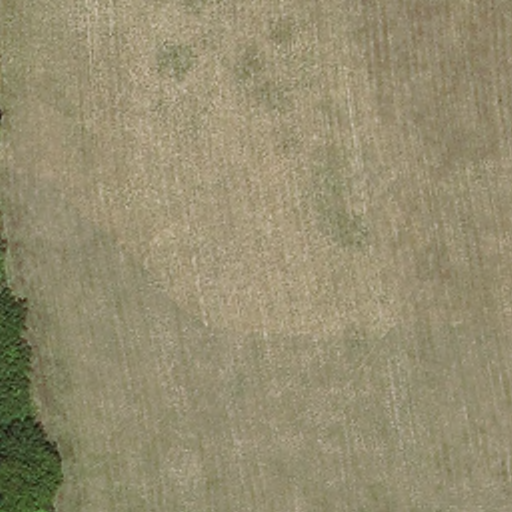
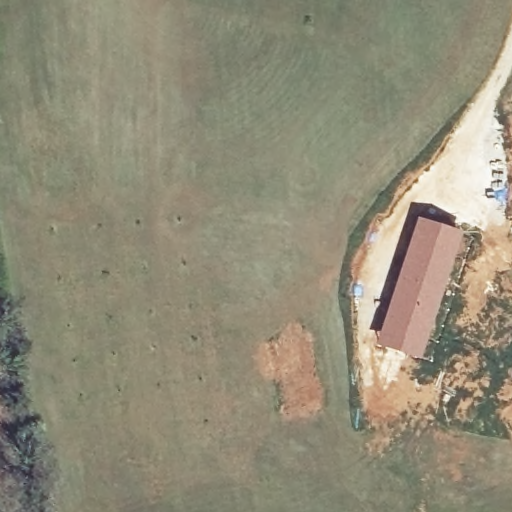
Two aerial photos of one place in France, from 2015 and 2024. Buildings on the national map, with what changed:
new [(416,217),(462,230),(420,358),(375,343),(416,217)]

